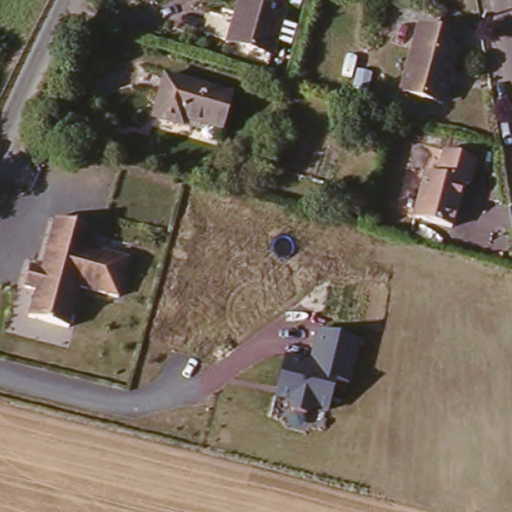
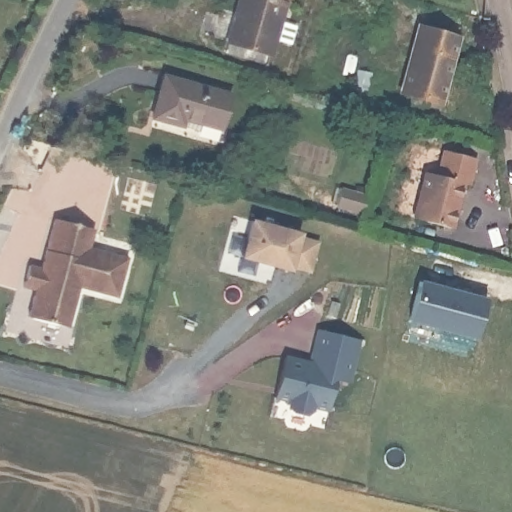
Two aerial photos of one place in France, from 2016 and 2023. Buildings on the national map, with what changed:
unchanged [(275,60),(237,53),(248,0),(286,0),(275,60)]
unchanged [(461,49),(434,114),(396,98),(423,33),(461,49)]
unchanged [(235,93),(233,113),(196,108),(195,116),(161,113),(163,85),(235,93)]
unchanged [(478,155),(471,183),(466,182),(453,230),(416,221),(429,173),(439,175),(446,147),(478,155)]
unchanged [(368,190),(363,211),(337,204),(342,182),(368,190)]
new [(299,232),(298,238),(318,243),(310,271),(291,268),(291,271),(275,267),(276,263),(258,258),(257,262),(242,257),(252,222),(299,232)]
unchanged [(33,291),(22,288),(27,267),(42,269),(49,223),(92,233),(89,249),(126,256),(117,300),(75,293),(67,329),(27,318),(33,291)]
new [(434,278),(505,305),(489,350),(418,322),(434,278)]
unchanged [(287,358),(310,364),(320,332),(361,344),(352,385),(336,380),(329,411),(315,410),(308,415),(290,409),(289,402),(275,400),(287,358)]

